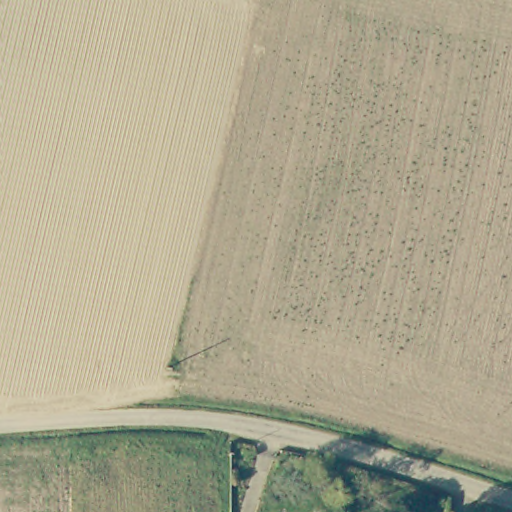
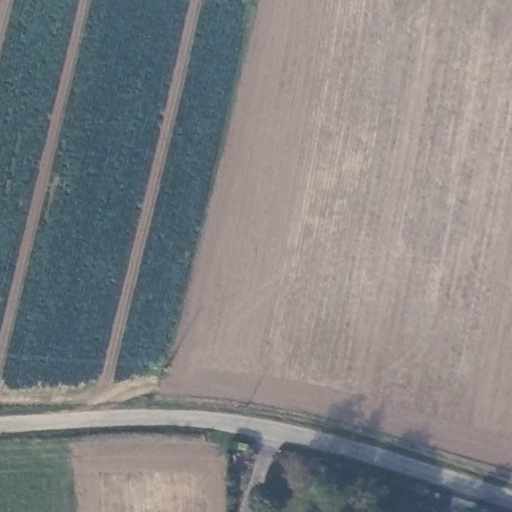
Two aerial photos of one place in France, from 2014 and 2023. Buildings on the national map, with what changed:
unchanged [(484,507),(501,512),(484,512),(484,507)]

